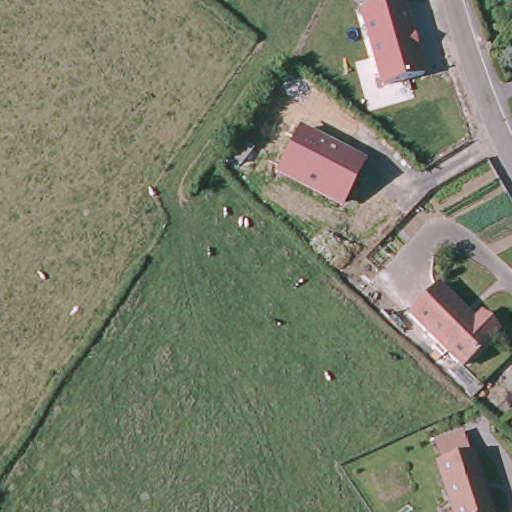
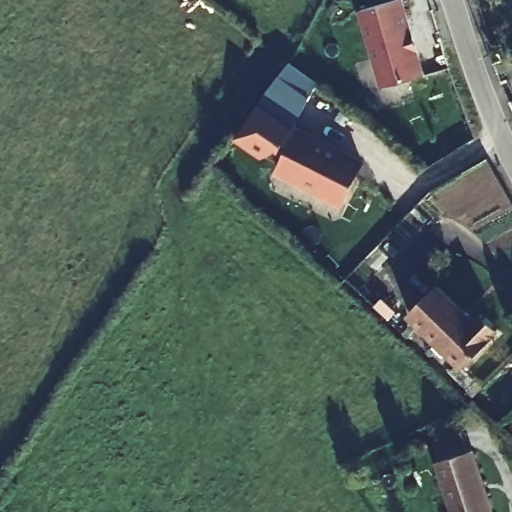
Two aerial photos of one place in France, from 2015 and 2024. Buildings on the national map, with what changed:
unchanged [(427,72),(379,87),(359,9),(391,0),(405,0),(427,72)]
new [(294,126),(259,103),(289,64),(317,84),(294,126)]
new [(259,103),(294,127),(279,153),(275,151),(262,159),(234,138),(259,103)]
unchanged [(365,160),(342,206),(274,172),(299,127),(365,160)]
unchanged [(441,289),(477,324),(486,315),(500,328),(461,366),(412,317),(441,289)]
unchanged [(494,512),(454,512),(441,461),(479,451),(494,512)]

